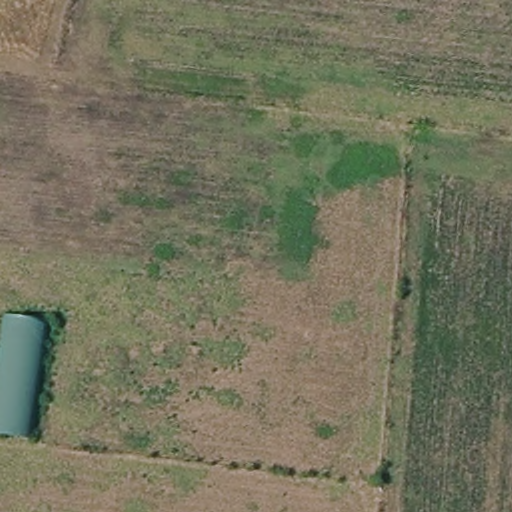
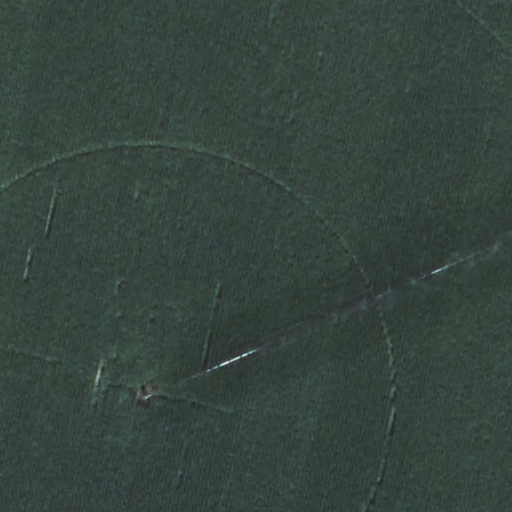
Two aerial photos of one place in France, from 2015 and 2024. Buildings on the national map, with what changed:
demolished [(0,318),(40,323),(30,439),(0,435),(0,318)]

